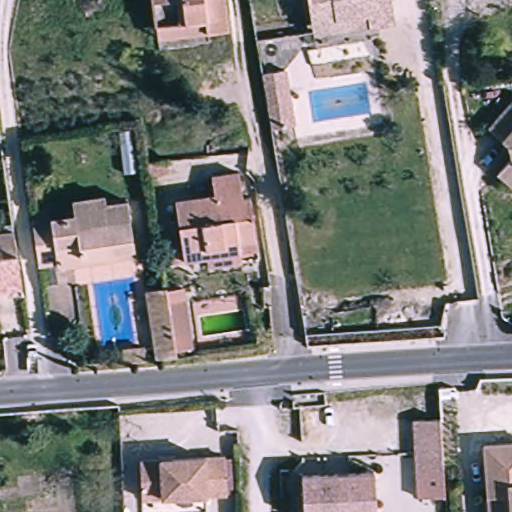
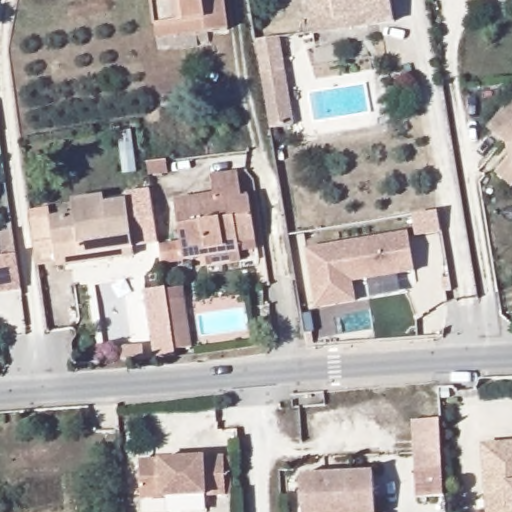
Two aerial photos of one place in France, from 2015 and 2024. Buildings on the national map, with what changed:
unchanged [(156,21),(153,0),(225,0),(229,25),(207,28),(198,29),(158,34),(156,21)]
unchanged [(308,0),(391,0),(395,22),(369,27),(313,36),(312,25),(308,0)]
new [(295,126),(271,130),(262,74),(286,70),(295,126)]
unchanged [(508,178),(492,164),(509,142),(509,132),(503,127),(500,131),(485,118),(512,87),(512,174),(508,178)]
unchanged [(167,161),(169,172),(149,175),(147,163),(167,161)]
unchanged [(202,252),(180,255),(170,196),(209,191),(207,171),(234,167),(238,192),(245,192),(252,235),(253,244),(236,247),(237,257),(203,262),(202,252)]
unchanged [(58,262),(38,265),(32,221),(31,210),(50,207),(51,219),(75,215),(73,200),(104,196),(105,204),(128,201),(133,237),(134,247),(135,255),(59,266),(58,262)]
unchanged [(21,288),(0,292),(0,257),(0,233),(13,231),(21,288)]
new [(414,272),(352,283),(356,302),(317,308),(306,251),(408,232),(414,272)]
unchanged [(175,350),(176,356),(156,358),(146,291),(166,287),(168,301),(185,298),(190,332),(192,347),(175,350)]
unchanged [(145,359),(123,361),(122,348),(144,347),(145,359)]
unchanged [(410,417),(436,415),(440,463),(413,466),(410,417)]
unchanged [(488,497),(484,446),(512,444),(512,512),(489,512),(488,497)]
unchanged [(193,490),(142,492),(140,454),(191,452),(225,450),(226,488),(193,490)]
unchanged [(417,497),(416,466),(440,463),(441,497),(417,497)]
unchanged [(303,473),(365,468),(371,468),(374,512),(302,512),(299,473),(303,473)]

